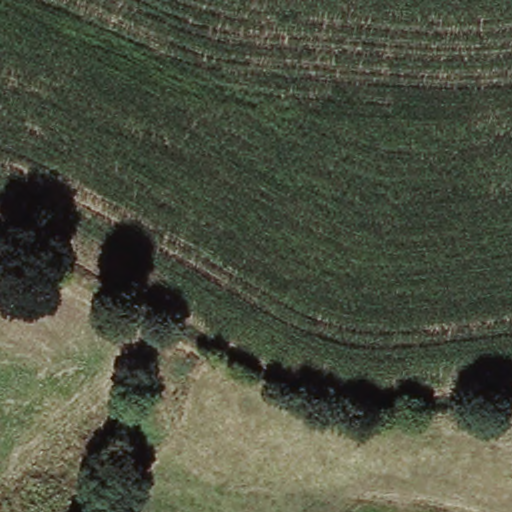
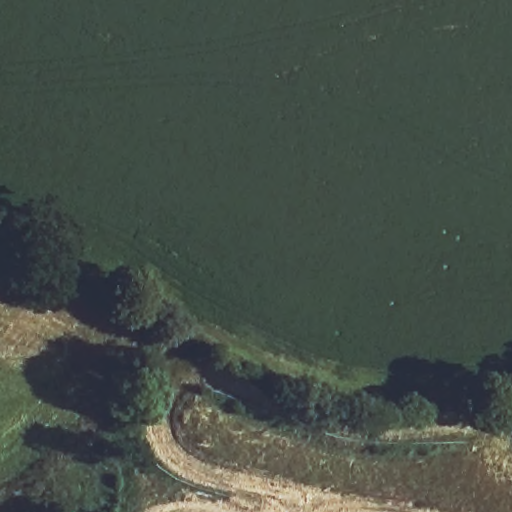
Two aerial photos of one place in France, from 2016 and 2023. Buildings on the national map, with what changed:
[]

